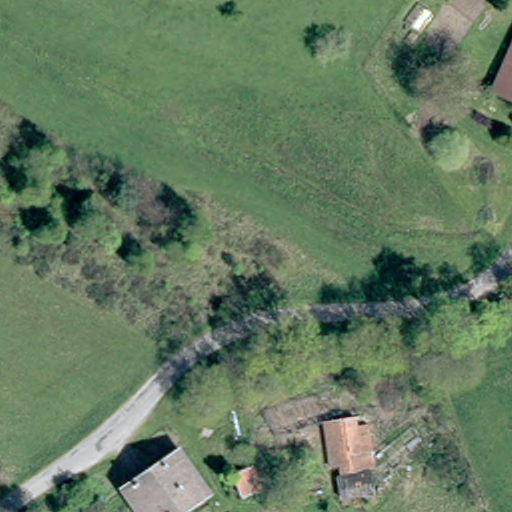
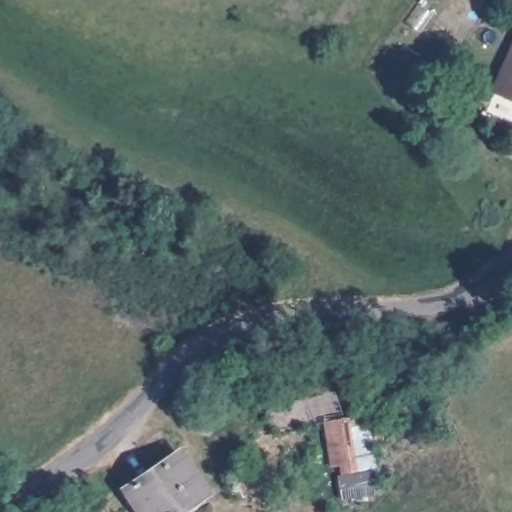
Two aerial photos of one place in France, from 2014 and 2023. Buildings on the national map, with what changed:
unchanged [(512,36),(512,102),(486,91),(512,36)]
unchanged [(329,500),(324,418),(370,413),(374,489),(329,500)]
unchanged [(148,500),(137,482),(180,456),(201,491),(204,496),(180,512),(143,512),(139,505),(148,500)]

